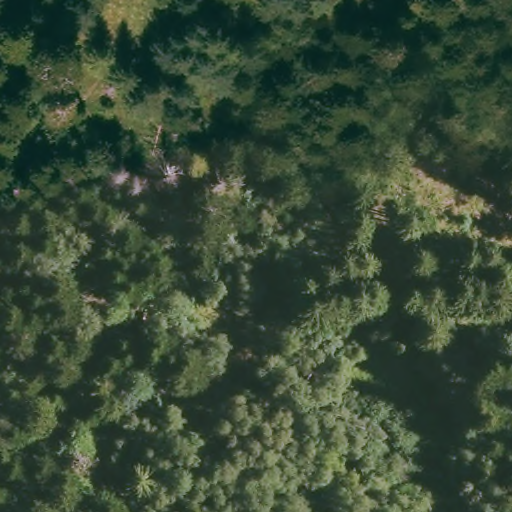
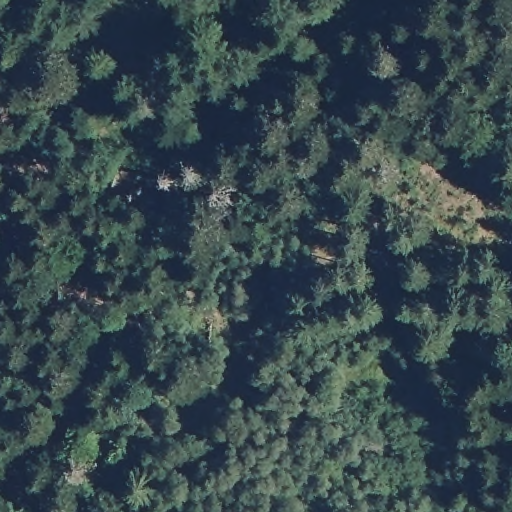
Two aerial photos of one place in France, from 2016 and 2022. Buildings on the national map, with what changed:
unchanged [(148,310),(150,300),(164,299),(163,313),(210,320),(212,320),(210,347),(139,338),(139,309),(148,310)]

